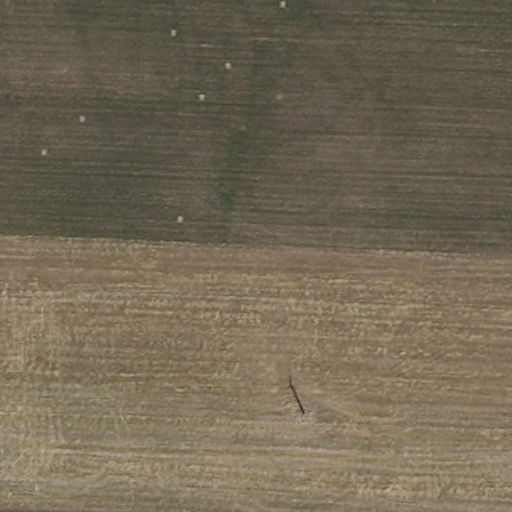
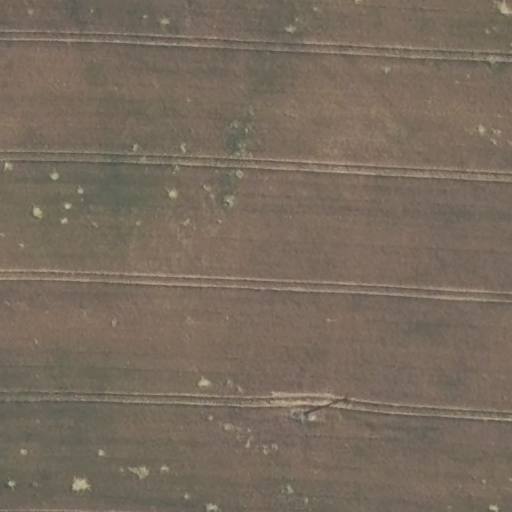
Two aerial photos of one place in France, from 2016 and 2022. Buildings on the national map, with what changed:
[]

